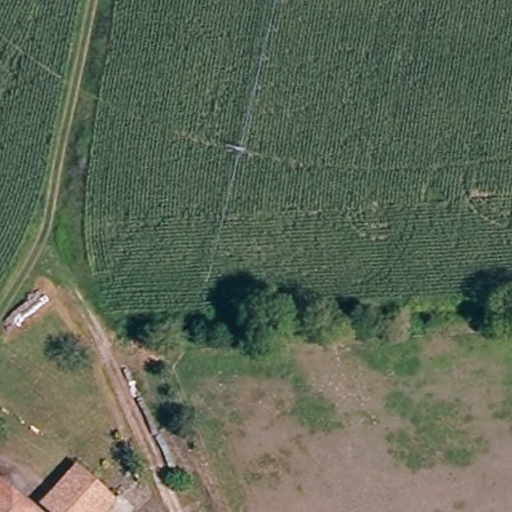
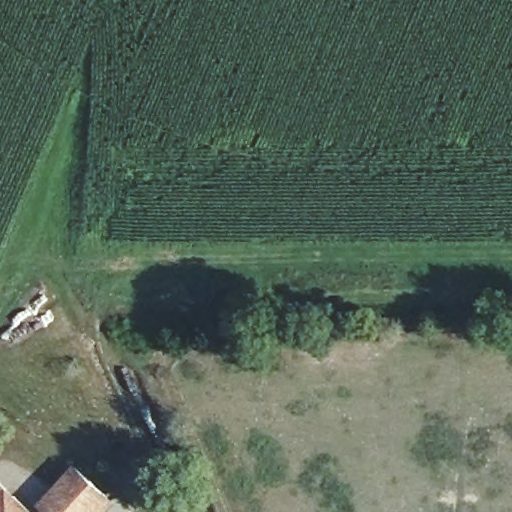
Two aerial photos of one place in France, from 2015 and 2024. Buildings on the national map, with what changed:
unchanged [(107,496),(113,490),(101,477),(117,457),(135,468),(137,479),(113,512),(108,512),(100,506),(107,496)]
unchanged [(107,496),(100,506),(96,512),(50,512),(41,505),(48,496),(72,468),(107,496)]
unchanged [(0,512),(0,485),(34,512),(0,512)]

